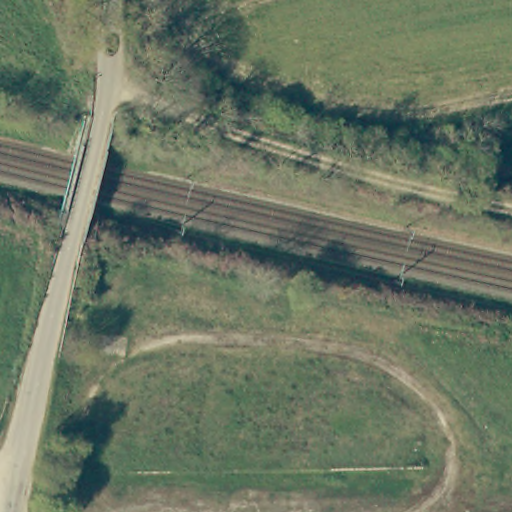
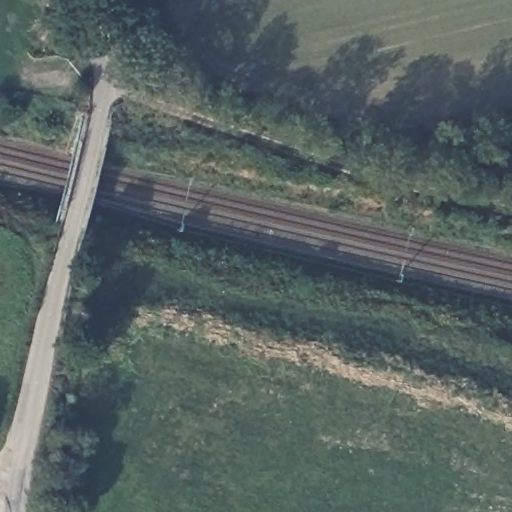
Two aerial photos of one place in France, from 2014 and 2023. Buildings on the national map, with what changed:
[]

